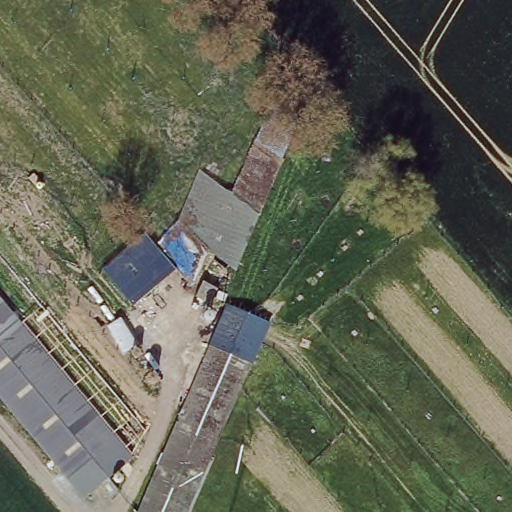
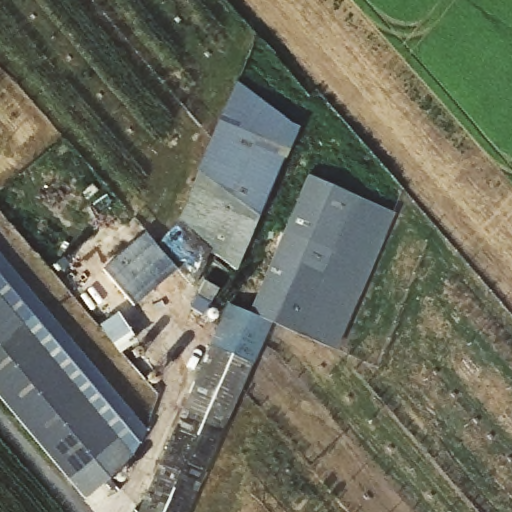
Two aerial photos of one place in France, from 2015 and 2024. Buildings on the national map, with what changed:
new [(285,160),(282,159),(235,272),(175,225),(235,81),(292,125),(300,127),(285,160)]
demolished [(265,116),(292,132),(281,158),(285,160),(236,272),(207,250),(192,287),(160,259),(199,169),(230,192),(265,116)]
new [(334,353),(270,325),(247,314),(307,175),(395,213),(334,353)]
new [(175,270),(132,306),(102,270),(145,232),(175,270)]
unchanged [(132,457),(84,500),(0,398),(0,252),(146,430),(132,457)]
unchanged [(270,325),(188,512),(138,512),(226,304),(270,325)]
new [(135,342),(117,355),(98,326),(117,313),(135,342)]

